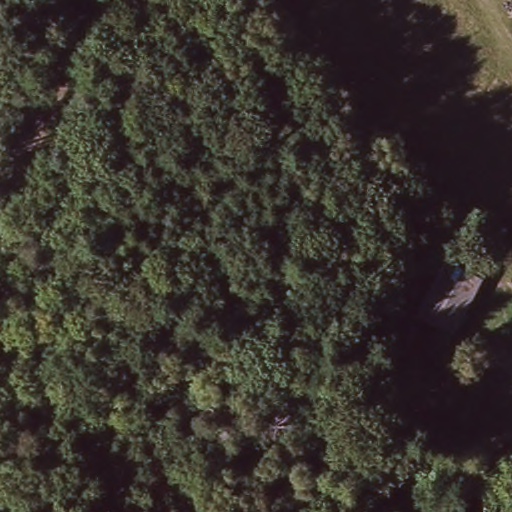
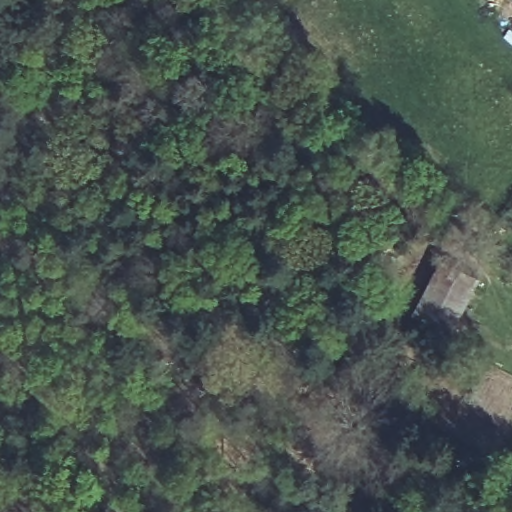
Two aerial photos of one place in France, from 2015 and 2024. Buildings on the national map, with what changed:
unchanged [(414,315),(442,260),(474,274),(482,277),(455,333),(436,325),(414,315)]

